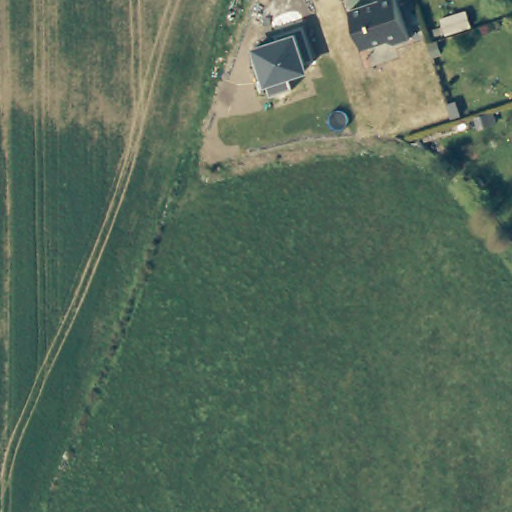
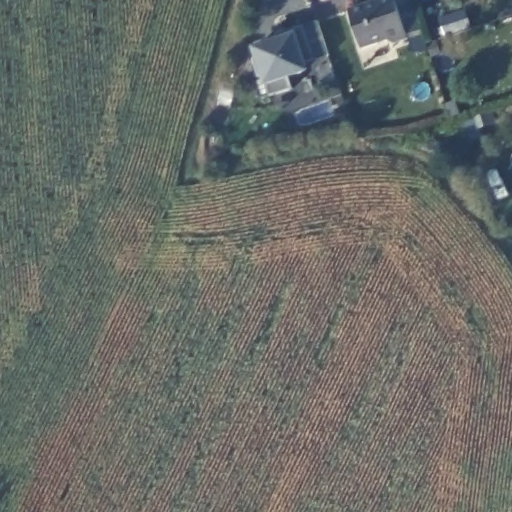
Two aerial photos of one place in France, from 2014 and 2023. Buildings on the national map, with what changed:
unchanged [(386,40),(361,48),(349,10),(380,0),(396,0),(409,40),(393,45),(386,40)]
unchanged [(263,85),(253,46),(295,31),(303,29),(313,60),(306,63),(308,70),(287,76),(291,90),(270,97),(263,85)]

